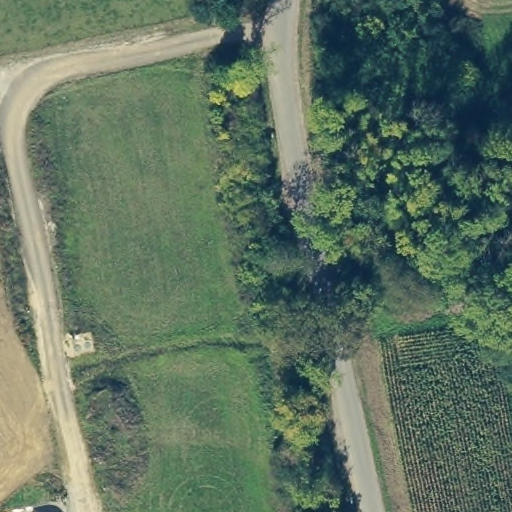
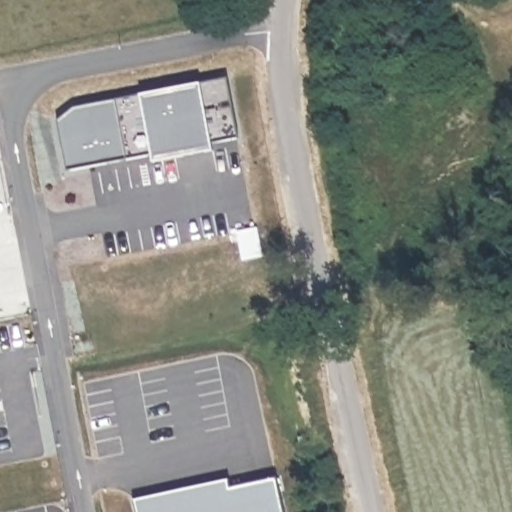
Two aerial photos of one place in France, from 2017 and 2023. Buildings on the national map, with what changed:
new [(57,120),(73,106),(139,93),(199,82),(226,78),(237,138),(211,144),(212,150),(152,162),(150,155),(67,169),(57,120)]
new [(128,512),(125,502),(124,494),(220,473),(222,481),(267,471),(277,512),(128,512)]

